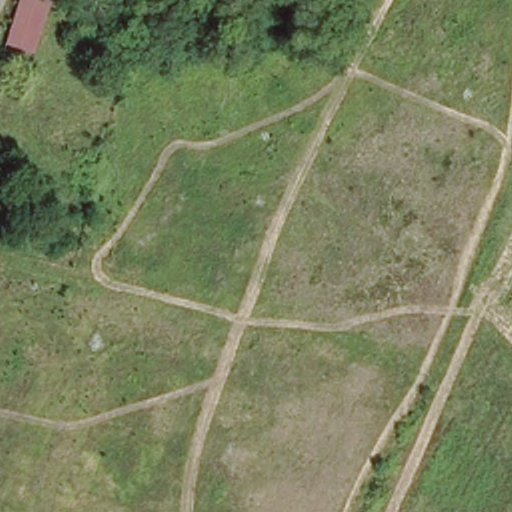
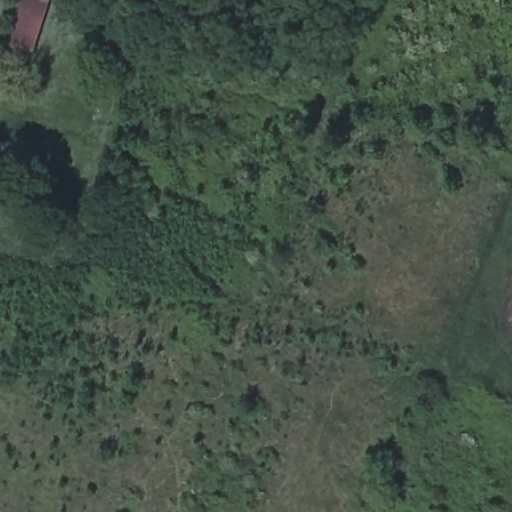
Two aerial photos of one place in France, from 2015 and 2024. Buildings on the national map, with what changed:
unchanged [(12,0),(42,0),(26,47),(0,37),(12,0)]

